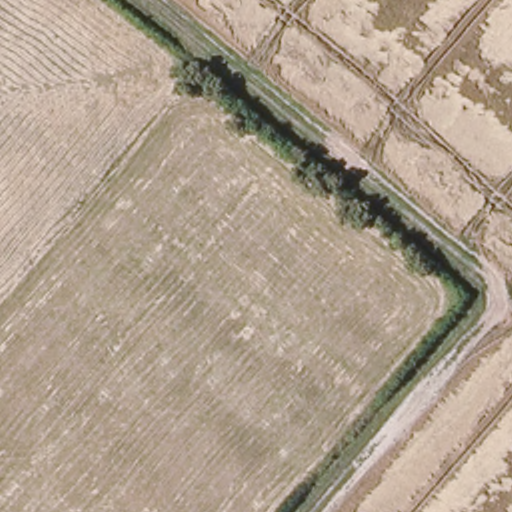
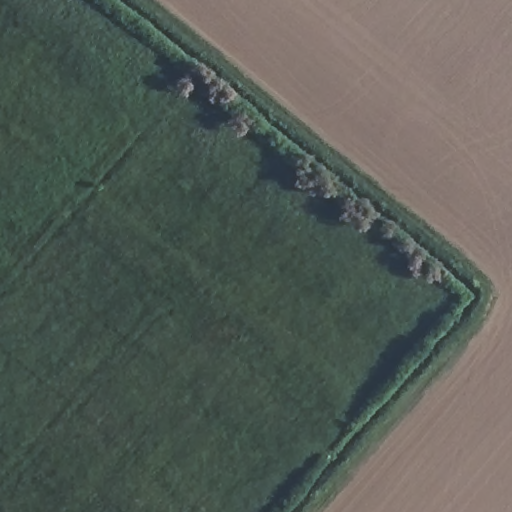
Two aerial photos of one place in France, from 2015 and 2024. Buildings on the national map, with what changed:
[]

